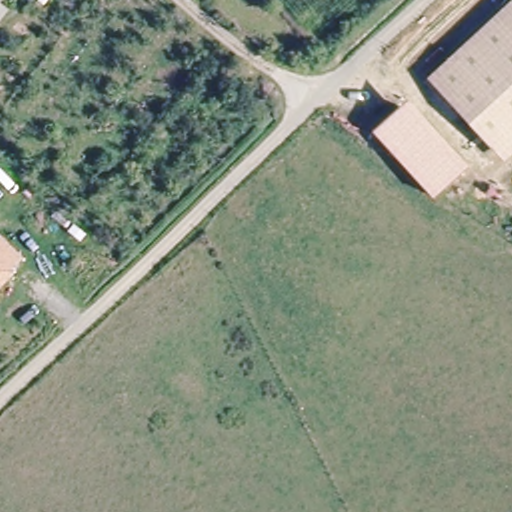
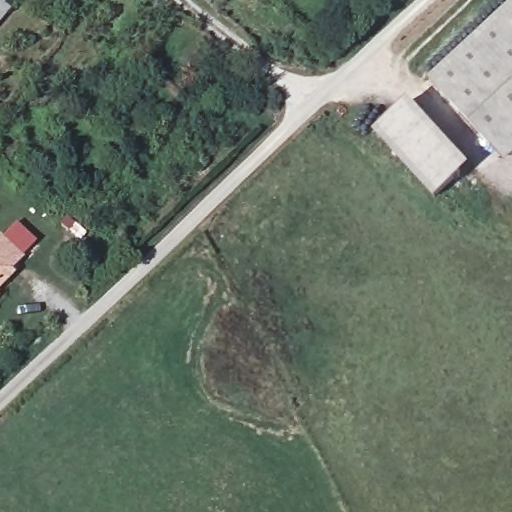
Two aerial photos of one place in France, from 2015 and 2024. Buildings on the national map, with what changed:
unchanged [(512,1),(512,159),(507,164),(428,81),(512,1)]
unchanged [(469,166),(434,200),(373,132),(409,101),(469,166)]
unchanged [(0,277),(0,243),(18,260),(0,277)]

